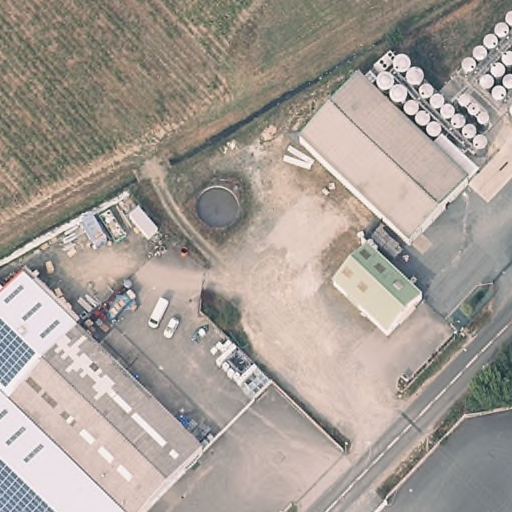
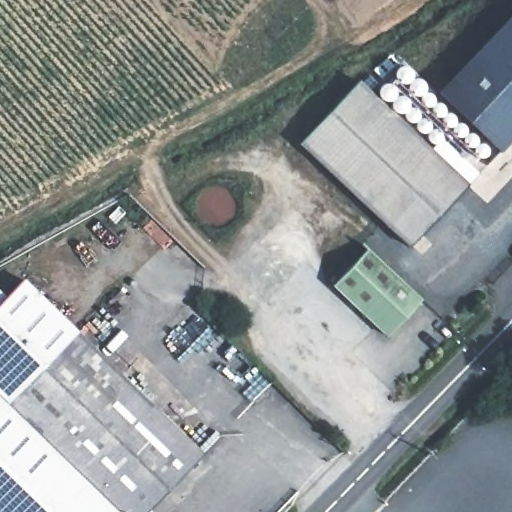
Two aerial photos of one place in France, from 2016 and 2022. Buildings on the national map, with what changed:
new [(512,11),(512,138),(499,152),(435,92),(512,11)]
unchanged [(362,81),(389,55),(479,141),(454,167),(362,81)]
unchanged [(303,145),(362,81),(454,167),(467,179),(408,245),(303,145)]
unchanged [(423,300),(387,335),(335,281),(371,247),(423,300)]
unchanged [(23,279),(76,331),(6,404),(117,512),(0,512),(0,293),(4,297),(23,279)]
unchanged [(145,512),(117,512),(6,404),(76,331),(200,455),(145,512)]

